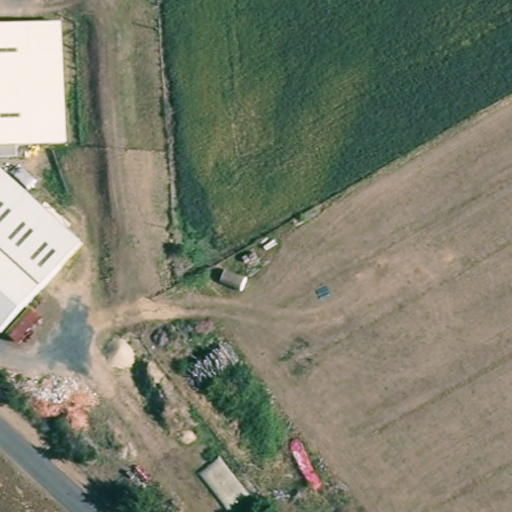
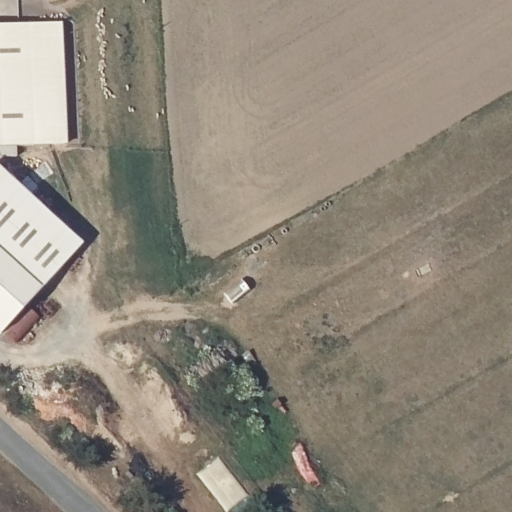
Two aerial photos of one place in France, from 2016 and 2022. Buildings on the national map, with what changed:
unchanged [(68,144),(18,145),(18,156),(0,156),(0,25),(64,22),(68,144)]
unchanged [(0,325),(0,160),(58,214),(88,242),(61,270),(4,329),(0,325)]

